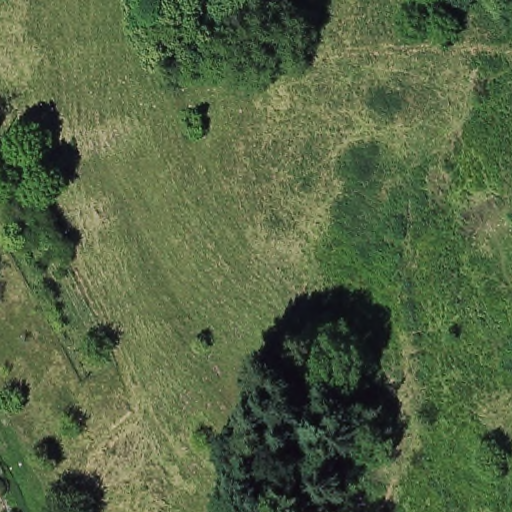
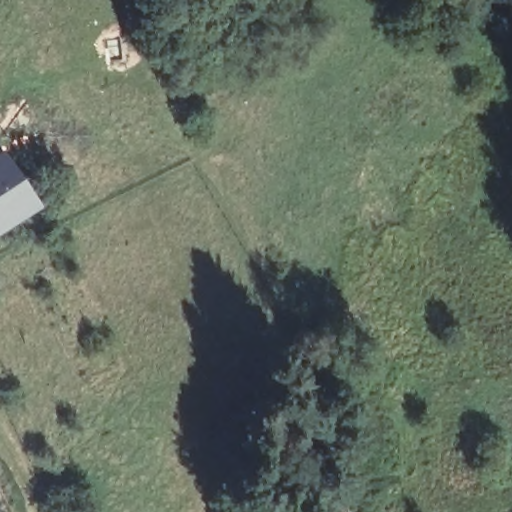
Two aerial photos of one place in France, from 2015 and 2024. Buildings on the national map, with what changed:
new [(0,236),(0,154),(40,206),(0,236)]

